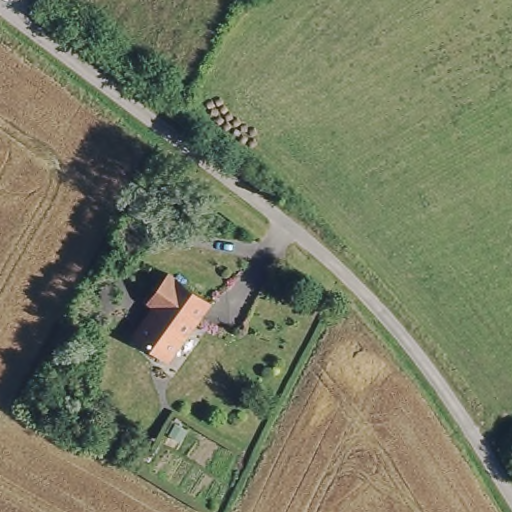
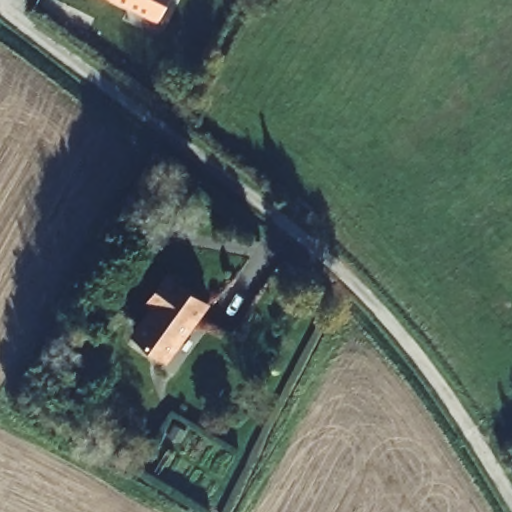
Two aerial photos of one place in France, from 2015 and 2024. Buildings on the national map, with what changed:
new [(111,0),(169,0),(158,23),(111,0)]
unchanged [(130,337),(153,305),(146,301),(166,275),(201,300),(159,359),(130,337)]

